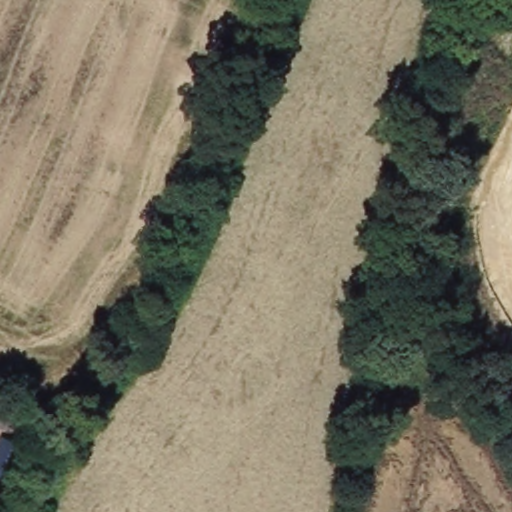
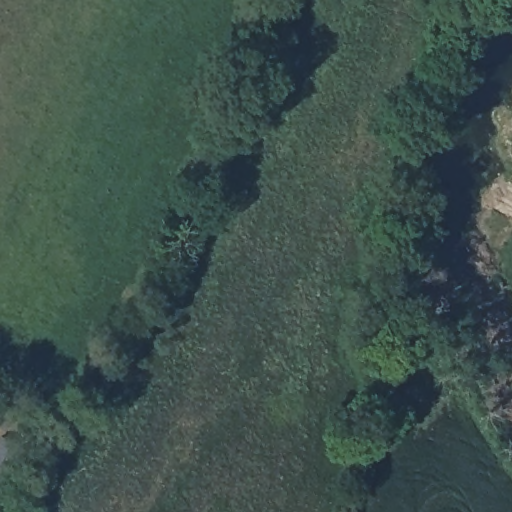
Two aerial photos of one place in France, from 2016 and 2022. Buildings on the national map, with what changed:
unchanged [(0,408),(12,413),(6,431),(0,429),(0,408)]

